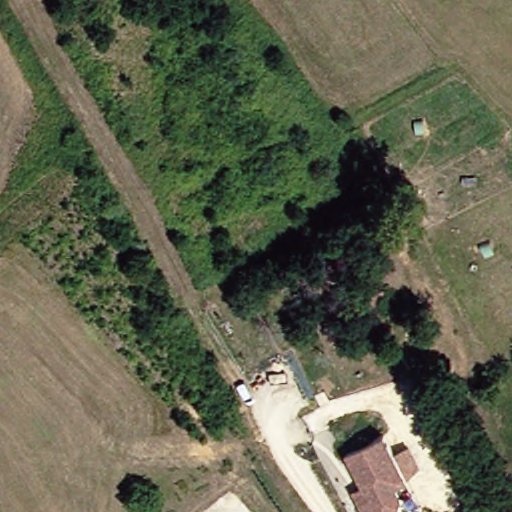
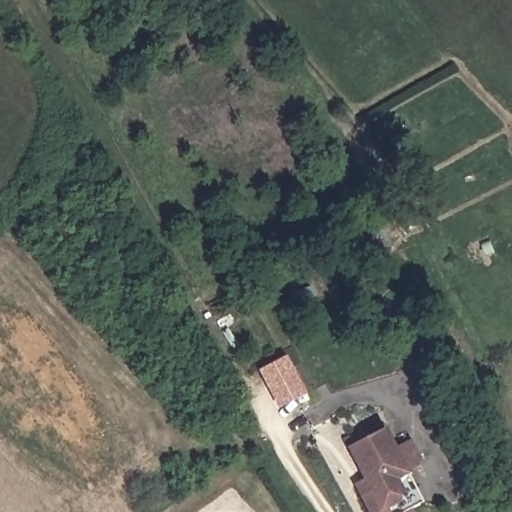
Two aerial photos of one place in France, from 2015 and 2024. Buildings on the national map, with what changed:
new [(259,370),(286,355),(308,394),(279,408),(259,370)]
demolished [(282,410),(269,389),(304,371),(314,392),(282,410)]
unchanged [(345,444),(383,423),(422,496),(393,512),(369,512),(359,492),(353,481),(363,475),(345,444)]

